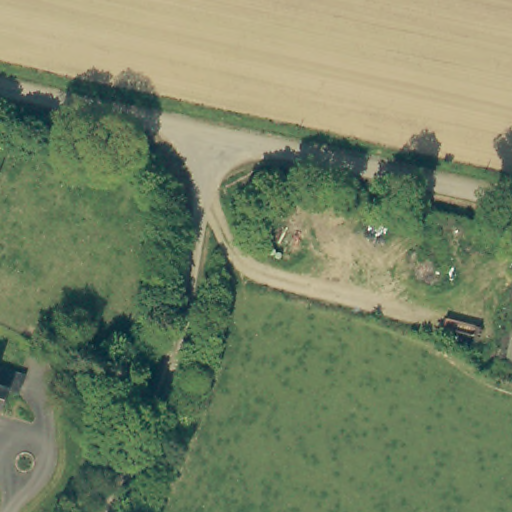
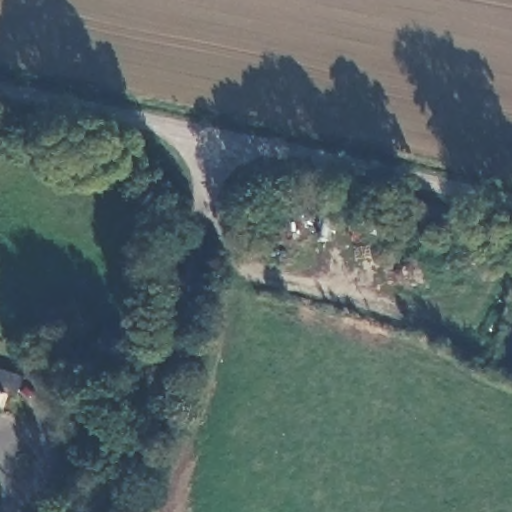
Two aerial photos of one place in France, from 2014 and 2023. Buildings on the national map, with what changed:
unchanged [(7,385),(1,404),(0,404),(0,382),(7,385)]

